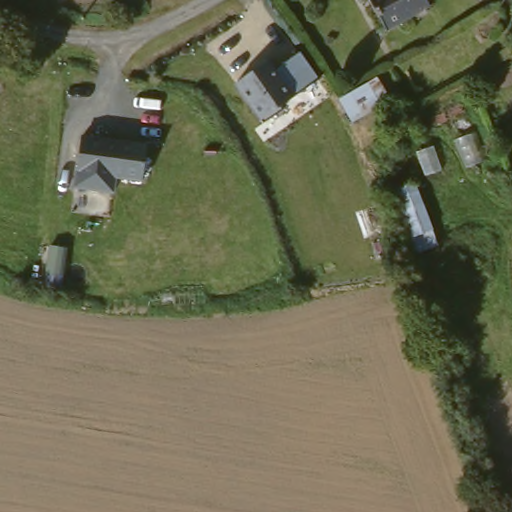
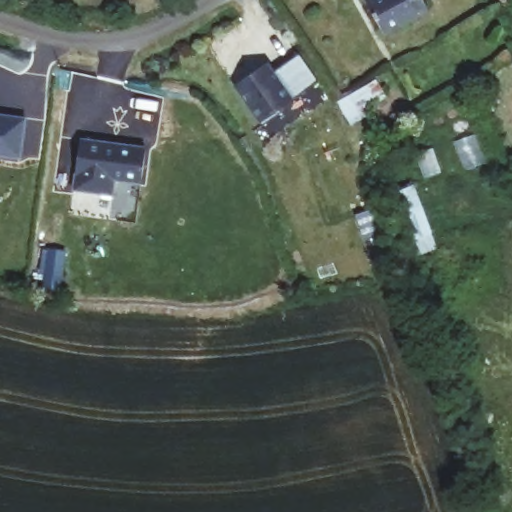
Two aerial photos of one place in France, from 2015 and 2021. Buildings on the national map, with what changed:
unchanged [(376,0),(428,0),(429,4),(387,25),(376,0)]
unchanged [(232,85),(268,60),(273,69),(296,54),(317,81),(257,125),(232,85)]
unchanged [(383,73),(399,99),(358,123),(344,96),(383,73)]
new [(27,117),(22,159),(0,155),(0,113),(27,117)]
unchanged [(78,146),(140,154),(136,186),(106,182),(104,194),(72,190),(78,146)]
unchanged [(422,178),(439,228),(411,239),(396,188),(422,178)]

